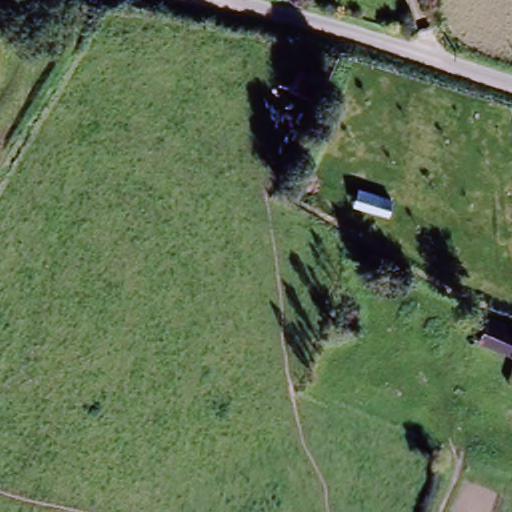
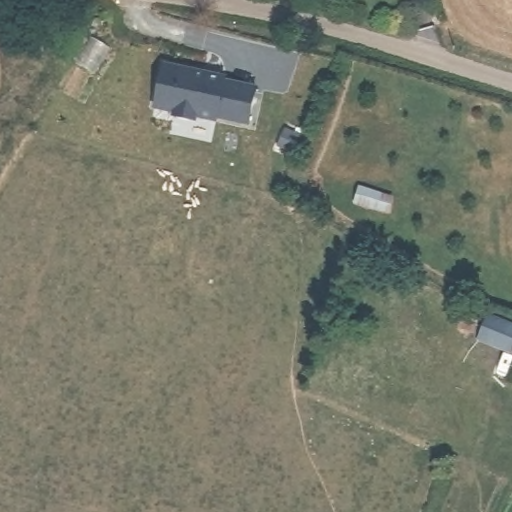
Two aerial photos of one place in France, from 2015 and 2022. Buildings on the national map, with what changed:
new [(227,79),(259,88),(253,126),(218,120),(218,123),(151,111),(161,61),(227,79)]
unchanged [(480,327),(491,304),(512,315),(512,343),(480,327)]

